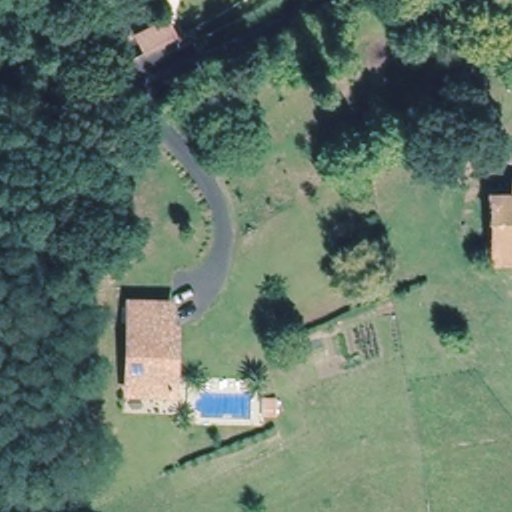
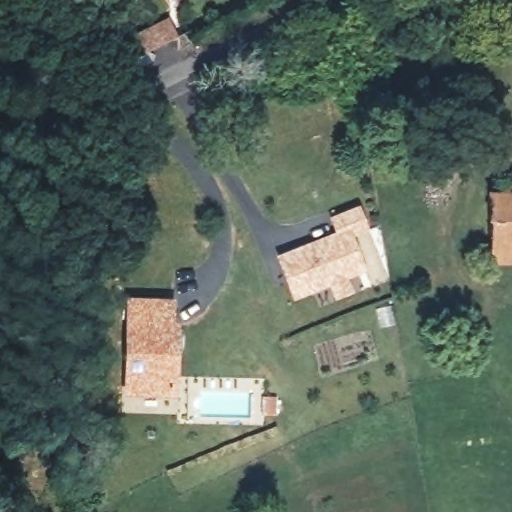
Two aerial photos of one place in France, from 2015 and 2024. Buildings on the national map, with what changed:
unchanged [(468,242),(487,242),(487,193),(507,193),(507,181),(512,181),(512,260),(487,260),(468,260),(468,242)]
new [(370,230),(355,236),(367,270),(348,278),(353,293),(337,299),(330,284),(293,300),(275,257),(334,232),(331,215),(360,203),(370,230)]
unchanged [(127,299),(170,298),(170,321),(175,322),(175,391),(129,391),(127,299)]
unchanged [(281,394),(281,409),(270,409),(270,394),(281,394)]

